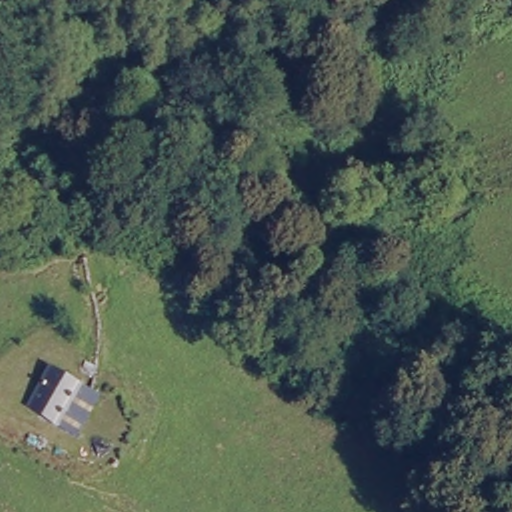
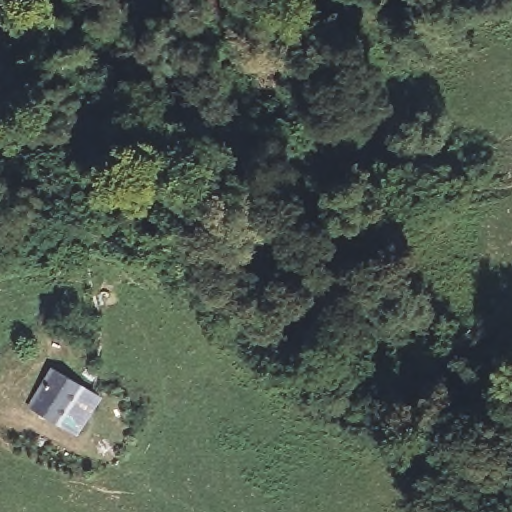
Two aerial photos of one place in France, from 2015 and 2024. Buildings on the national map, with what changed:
unchanged [(92,400),(70,424),(37,399),(57,375),(92,400)]

